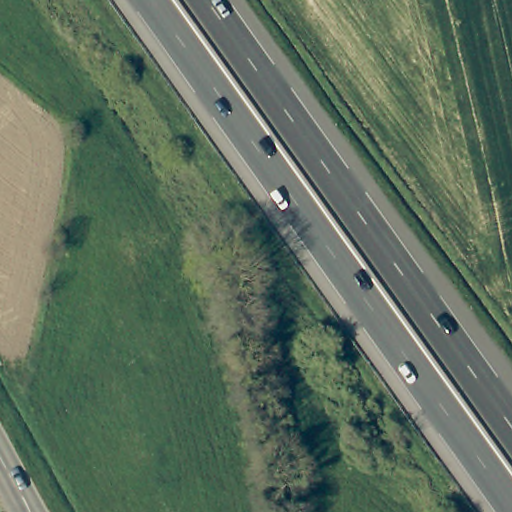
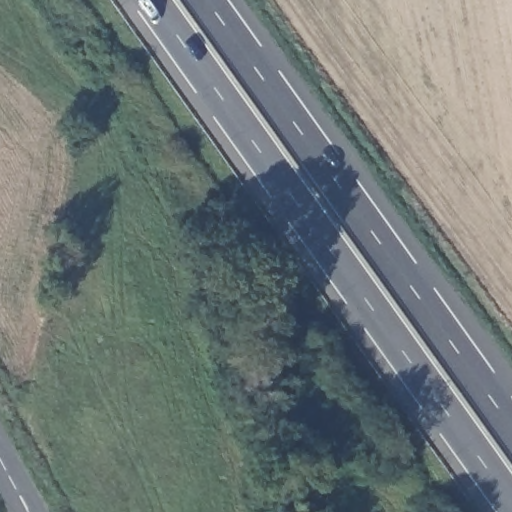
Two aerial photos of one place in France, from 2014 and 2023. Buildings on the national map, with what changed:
[]

